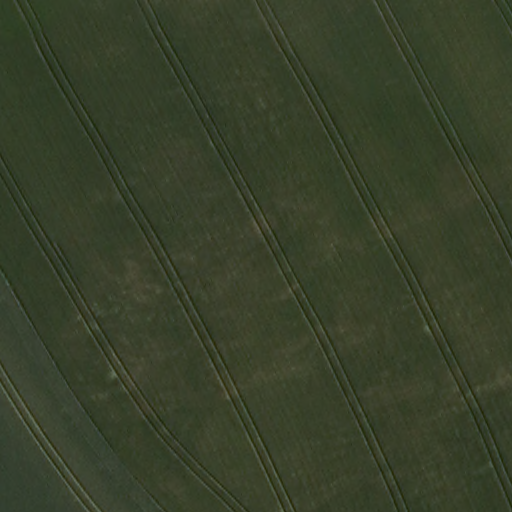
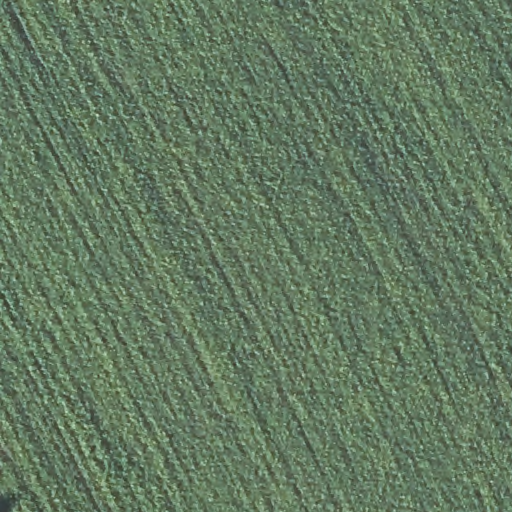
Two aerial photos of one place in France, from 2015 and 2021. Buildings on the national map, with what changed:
[]

